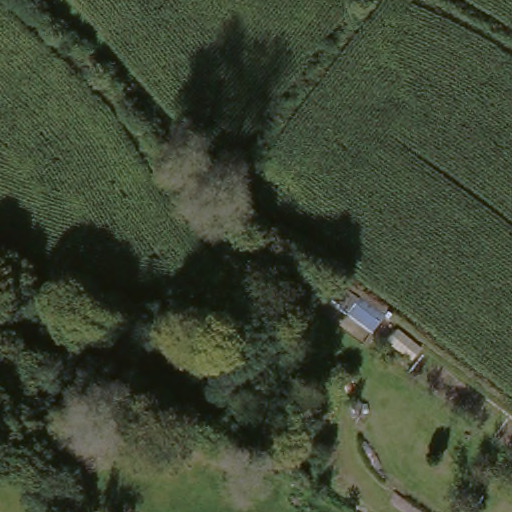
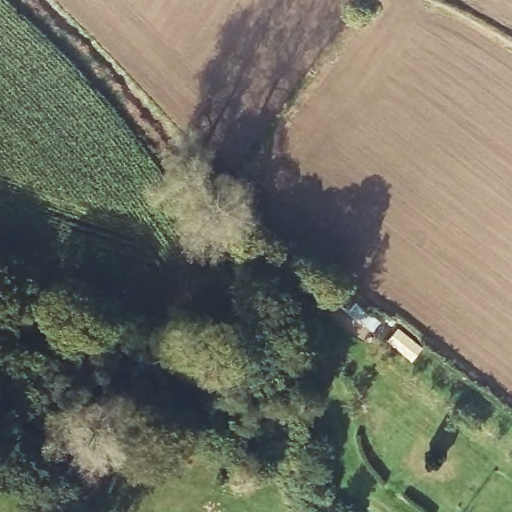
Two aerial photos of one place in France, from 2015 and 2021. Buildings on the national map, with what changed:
[]

